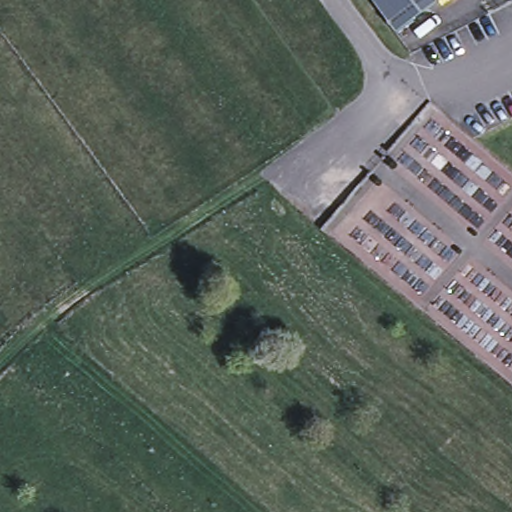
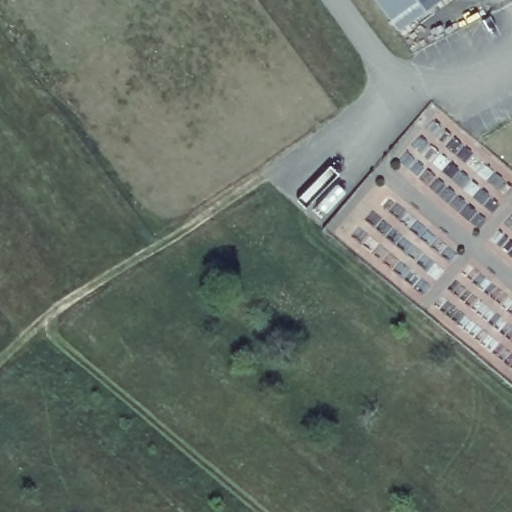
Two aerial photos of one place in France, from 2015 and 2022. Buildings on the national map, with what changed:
unchanged [(400,26),(381,0),(432,0),(400,26)]

